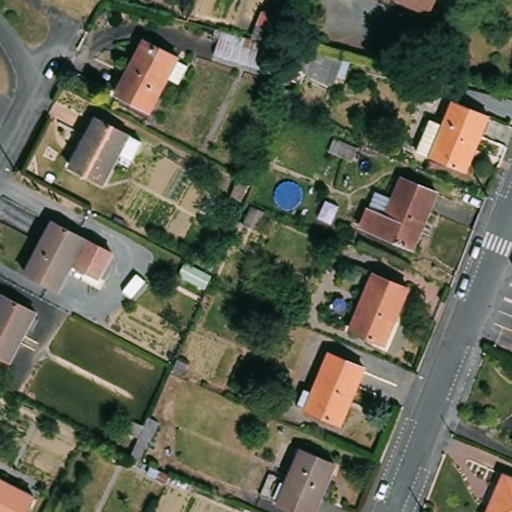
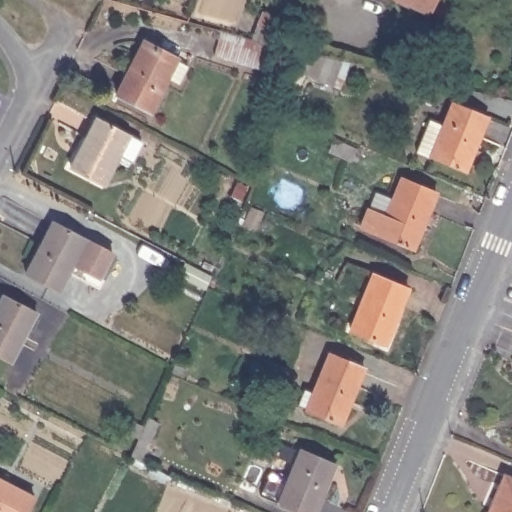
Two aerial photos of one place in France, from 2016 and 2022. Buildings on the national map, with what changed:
unchanged [(437,13),(406,0),(443,0),(437,13)]
unchanged [(191,62),(182,79),(171,74),(153,107),(120,88),(148,35),(182,53),(180,57),(191,62)]
unchanged [(494,115),(471,171),(436,157),(458,101),(494,115)]
unchanged [(98,117),(146,143),(136,161),(123,154),(107,185),(73,167),(98,117)]
unchanged [(396,204),(408,174),(444,190),(421,246),(368,225),(379,198),(396,204)]
unchanged [(55,222),(115,254),(102,278),(75,264),(62,290),(28,272),(55,222)]
unchanged [(374,271),(409,285),(386,343),(351,329),(374,271)]
unchanged [(5,295),(39,313),(13,364),(0,357),(0,303),(5,295)]
unchanged [(331,351),(366,366),(342,423),(309,407),(331,351)]
unchanged [(293,480),(306,448),(341,464),(322,512),(307,512),(267,494),(276,472),(293,480)]
unchanged [(512,512),(489,512),(506,474),(512,477),(512,512)]
unchanged [(35,495),(26,512),(0,512),(0,477),(35,495)]

